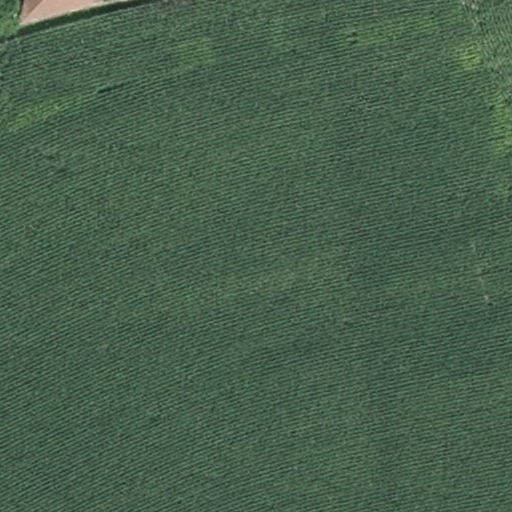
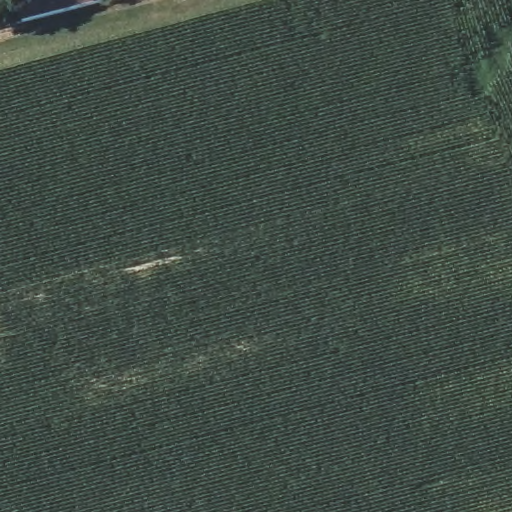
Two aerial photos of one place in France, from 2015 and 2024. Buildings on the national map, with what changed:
unchanged [(30,0),(93,0),(94,4),(25,22),(30,0)]

